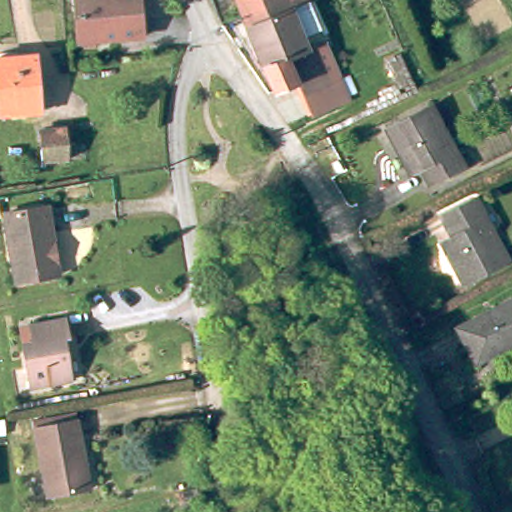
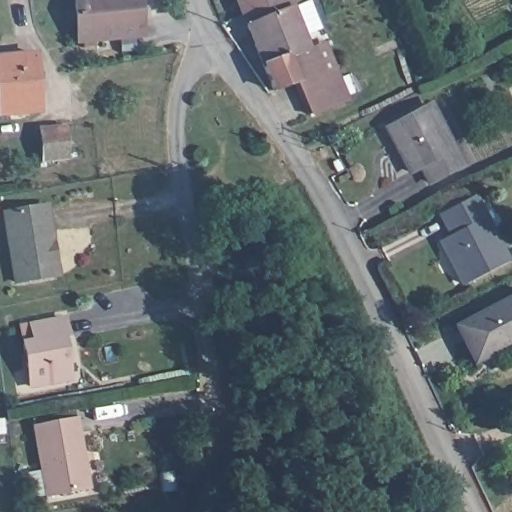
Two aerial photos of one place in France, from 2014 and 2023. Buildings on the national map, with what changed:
unchanged [(158,32),(143,33),(143,36),(78,41),(76,0),(154,0),(158,32)]
unchanged [(248,20),(240,0),(296,0),(248,20)]
unchanged [(346,84),(355,105),(317,120),(303,87),(280,97),(248,20),(296,0),(321,0),(322,3),(315,7),(327,34),(308,42),(313,54),(317,52),(330,47),(346,84)]
unchanged [(3,115),(0,70),(0,57),(13,56),(42,54),(46,112),(18,114),(3,115)]
unchanged [(465,167),(433,184),(427,171),(416,177),(392,133),(437,111),(465,167)]
unchanged [(65,129),(67,160),(44,162),(41,131),(65,129)]
unchanged [(346,169),(339,173),(333,161),(340,158),(346,169)]
unchanged [(508,261),(464,284),(442,241),(453,236),(442,214),(474,197),(508,261)]
unchanged [(5,221),(0,222),(0,207),(3,206),(5,221)]
unchanged [(65,280),(22,287),(10,218),(53,211),(65,280)]
unchanged [(463,332),(512,306),(512,350),(481,367),(463,332)]
unchanged [(37,386),(30,349),(29,343),(40,342),(36,325),(70,319),(73,337),(68,338),(69,345),(75,379),(37,386)]
unchanged [(91,488),(48,497),(34,426),(77,418),(91,488)]

